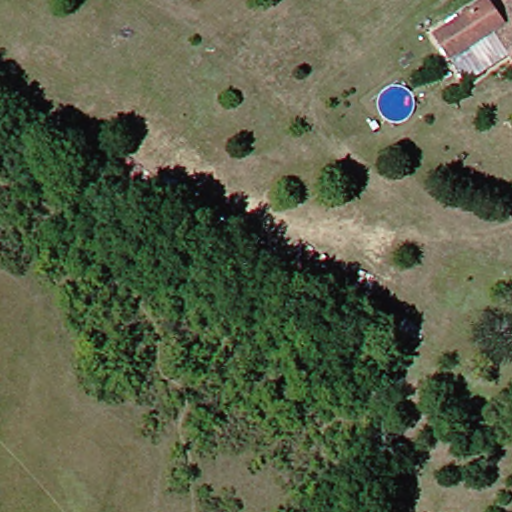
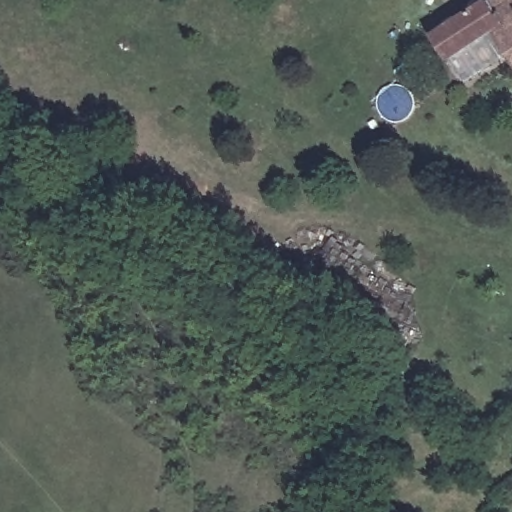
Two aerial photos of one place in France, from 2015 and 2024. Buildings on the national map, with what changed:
unchanged [(512,55),(469,81),(455,60),(452,61),(437,36),(491,0),(497,9),(510,0),(512,0),(512,56),(512,55)]

